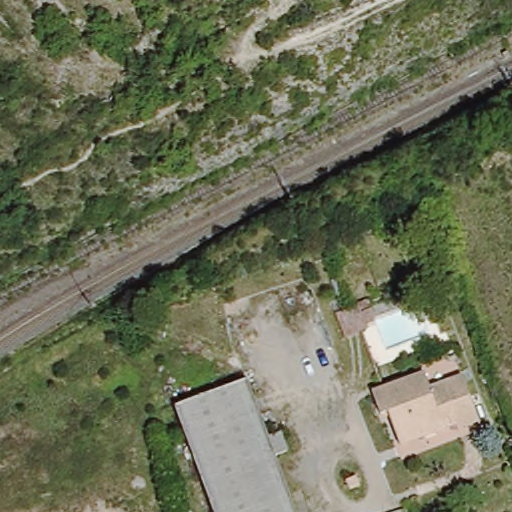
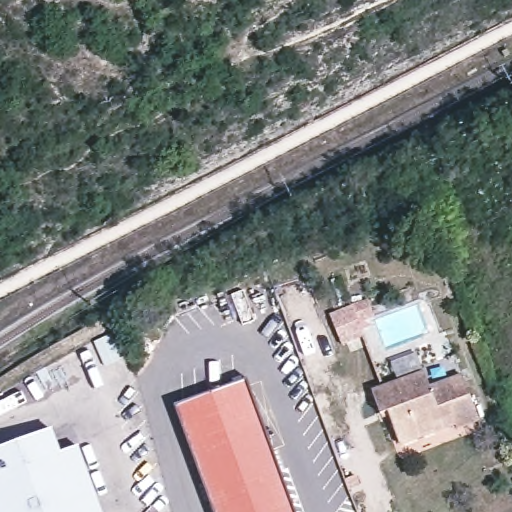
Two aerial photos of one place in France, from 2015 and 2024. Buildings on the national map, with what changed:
demolished [(348,287),(351,296),(366,291),(370,299),(362,303),(365,310),(342,319),(332,293),(348,287)]
unchanged [(347,314),(350,323),(365,317),(368,326),(361,329),(363,336),(340,346),(330,320),(347,314)]
unchanged [(438,434),(404,447),(392,415),(383,418),(375,394),(422,377),(428,394),(465,383),(471,399),(481,424),(460,432),(453,422),(436,428),(438,434)]
unchanged [(247,379),(268,439),(275,456),(297,512),(215,512),(175,407),(247,379)]
new [(78,449),(102,512),(0,512),(0,449),(50,430),(60,455),(78,449)]

